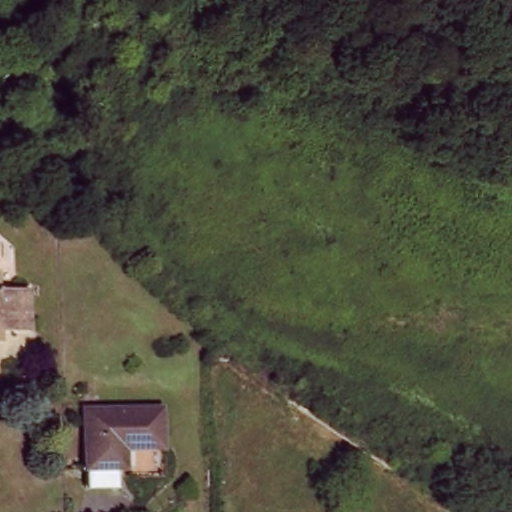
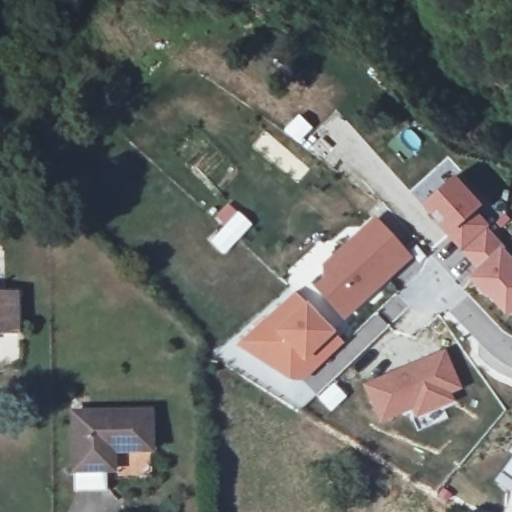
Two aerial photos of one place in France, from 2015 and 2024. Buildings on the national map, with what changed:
new [(486,204),(478,211),(492,225),(490,227),(505,245),(512,252),(512,315),(492,293),(490,295),(471,275),(479,267),(435,221),(439,217),(425,202),(457,172),(486,204)]
new [(324,278),(322,267),(375,217),(413,258),(345,321),(313,288),(324,278)]
unchanged [(18,285),(19,323),(0,324),(0,285),(18,285)]
new [(296,293),(308,304),(336,334),(345,343),(304,383),(291,383),(236,346),(296,293)]
new [(447,350),(463,391),(452,395),(455,404),(416,422),(412,411),(380,426),(363,386),(447,350)]
unchanged [(107,475),(75,475),(73,432),(74,413),(85,414),(151,415),(152,456),(118,457),(118,475),(107,475)]

